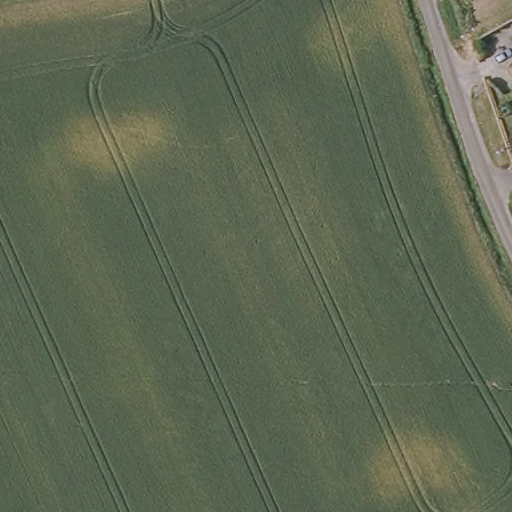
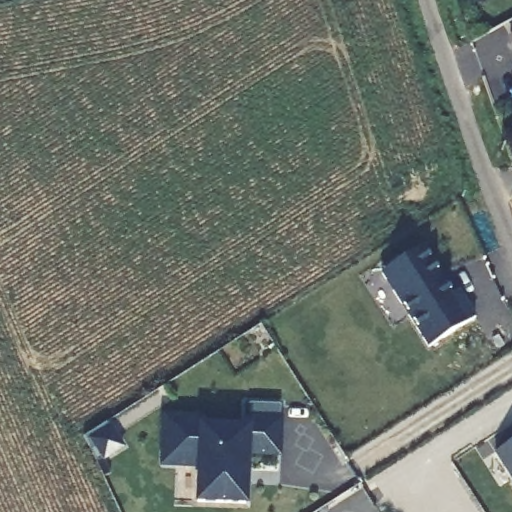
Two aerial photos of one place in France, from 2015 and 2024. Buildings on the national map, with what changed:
unchanged [(511,39),(512,38),(512,41),(511,39)]
new [(422,247),(452,295),(458,291),(475,318),(429,347),(382,273),(422,247)]
new [(246,504),(197,502),(199,467),(162,466),(164,417),(202,418),(202,427),(247,428),(247,418),(248,403),(281,405),(280,420),(279,455),(247,454),(247,468),(246,487),(246,504)]
new [(110,428),(122,447),(104,460),(91,441),(110,428)]
new [(495,452),(512,441),(512,478),(495,452)]

